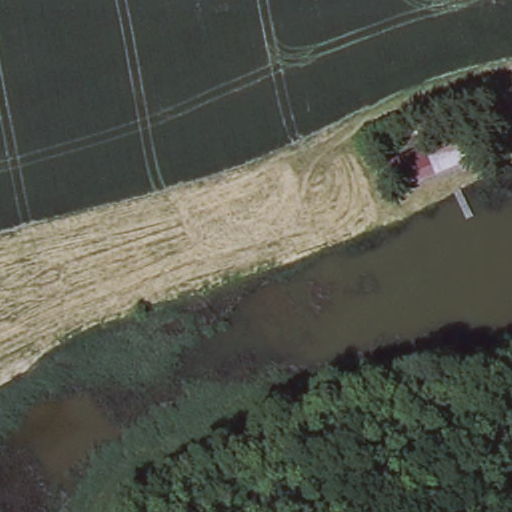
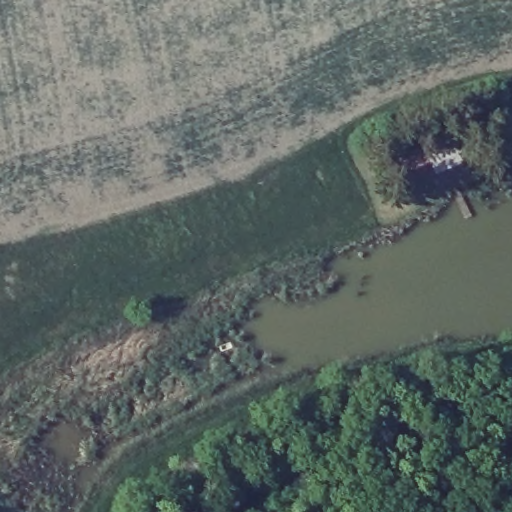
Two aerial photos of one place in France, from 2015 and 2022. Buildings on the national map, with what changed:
unchanged [(416,152),(452,135),(465,155),(435,169),(416,152)]

